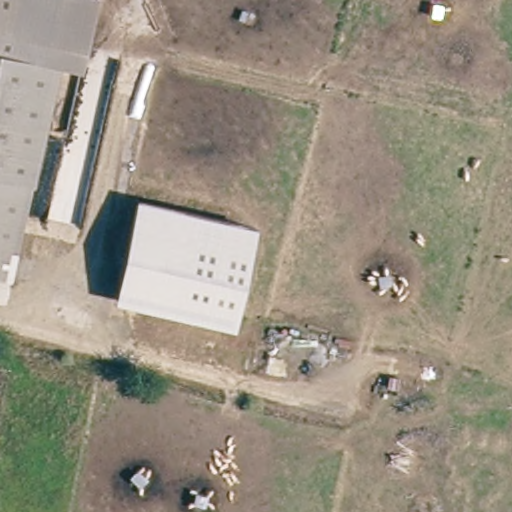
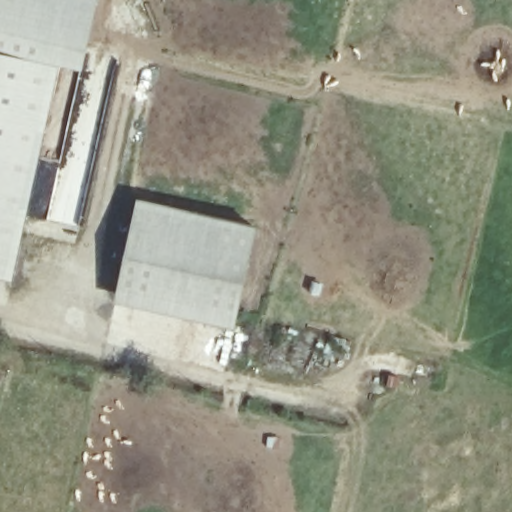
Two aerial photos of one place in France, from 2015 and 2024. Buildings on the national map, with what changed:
unchanged [(89,50),(66,45),(0,30),(0,0),(100,0),(89,50)]
unchanged [(61,67),(49,64),(0,53),(0,30),(66,45),(61,67)]
unchanged [(35,183),(7,177),(0,176),(0,53),(49,64),(61,67),(35,183)]
unchanged [(0,176),(7,177),(0,208),(0,176)]
unchanged [(13,279),(0,276),(0,208),(7,177),(35,183),(13,279)]
unchanged [(236,330),(116,302),(137,200),(257,228),(236,330)]

